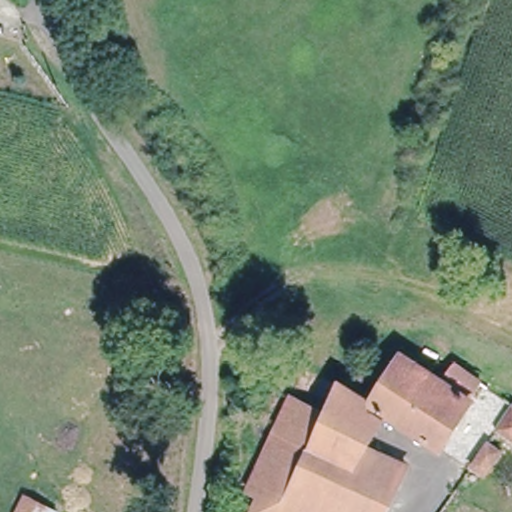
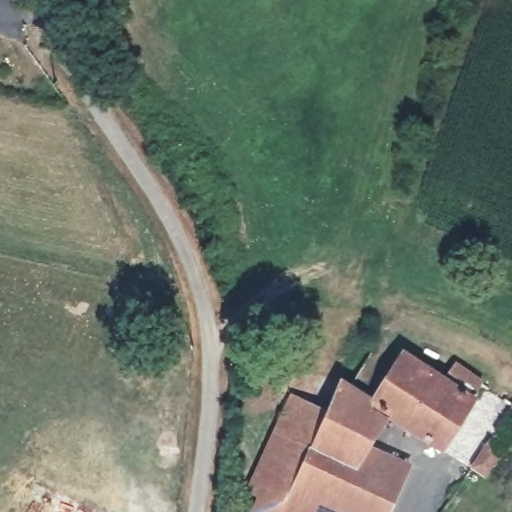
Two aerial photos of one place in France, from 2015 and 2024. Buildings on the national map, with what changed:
unchanged [(336,376),(365,395),(398,348),(441,380),(445,375),(433,365),(443,352),(485,381),(441,448),(386,412),(366,445),(410,463),(387,512),(306,512),(293,506),(291,512),(268,512),(263,510),(268,495),(248,486),(287,393),(323,407),(336,376)]
unchanged [(507,435),(512,428),(512,438),(507,435)]
unchanged [(493,448),(508,458),(493,480),(477,470),(493,448)]

